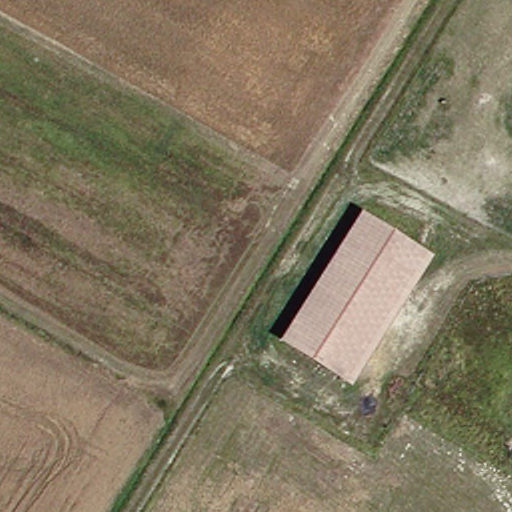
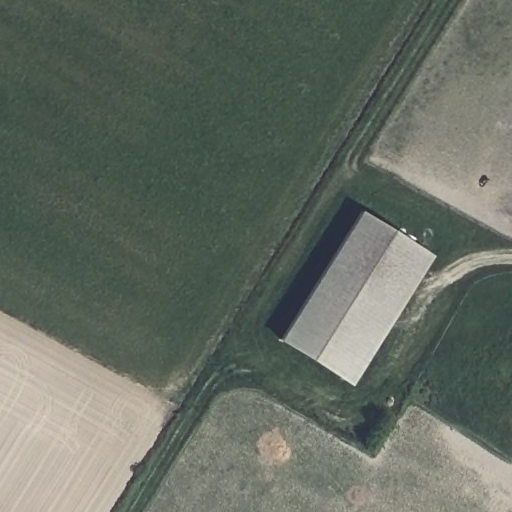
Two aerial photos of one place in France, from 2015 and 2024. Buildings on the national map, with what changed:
unchanged [(363,213),(435,257),(357,385),(284,340),(363,213)]

